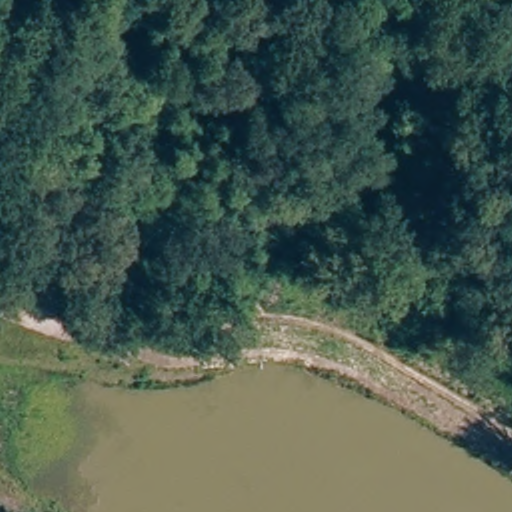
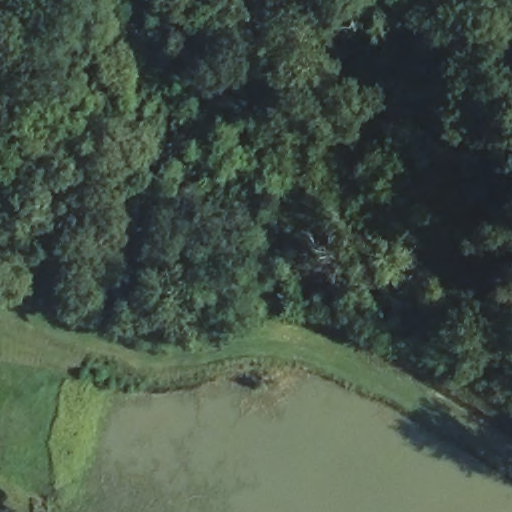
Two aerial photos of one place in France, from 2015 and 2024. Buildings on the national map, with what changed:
[]

